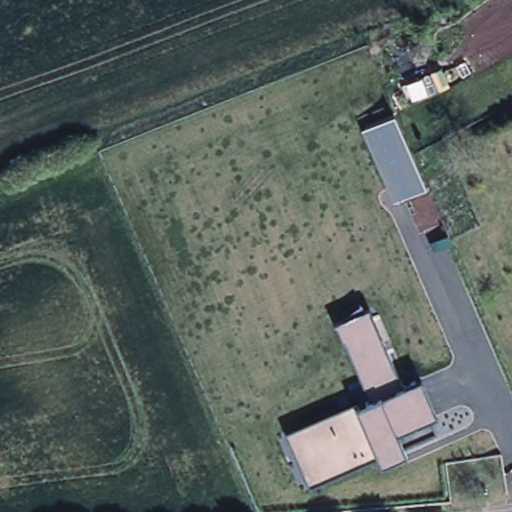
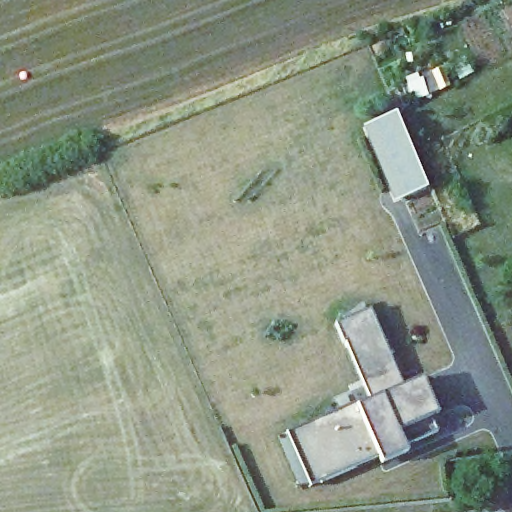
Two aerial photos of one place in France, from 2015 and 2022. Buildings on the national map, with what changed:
unchanged [(395,115),(427,188),(393,202),(364,131),(395,115)]
unchanged [(369,311),(402,389),(422,380),(436,415),(429,418),(437,432),(405,446),(407,453),(382,464),(379,458),(311,487),(288,434),(357,407),(371,401),(337,324),(369,311)]

